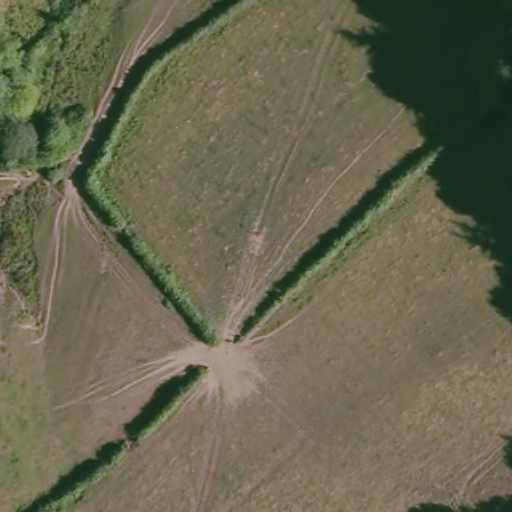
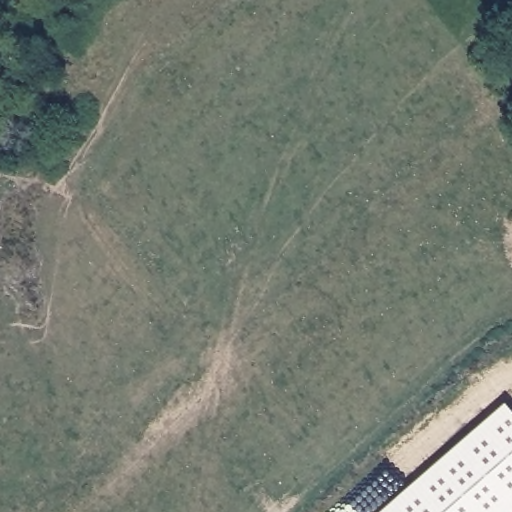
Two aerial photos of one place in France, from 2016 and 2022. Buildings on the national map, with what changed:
new [(512,397),(512,490),(486,512),(375,512),(512,397)]

